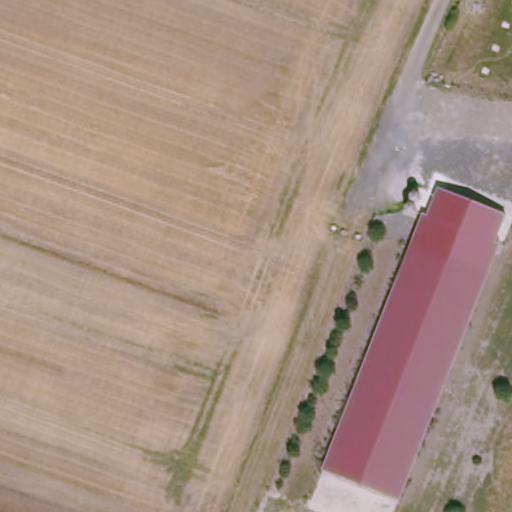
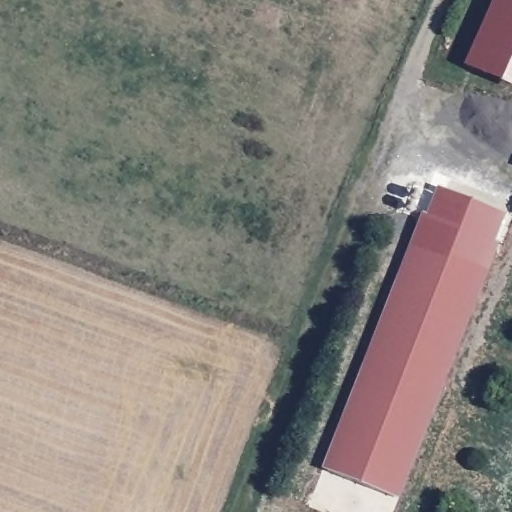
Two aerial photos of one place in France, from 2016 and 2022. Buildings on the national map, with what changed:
new [(465,66),(495,0),(512,0),(512,87),(465,66)]
unchanged [(421,209),(427,212),(438,186),(505,212),(495,240),(500,243),(397,497),(321,467),(421,209)]

